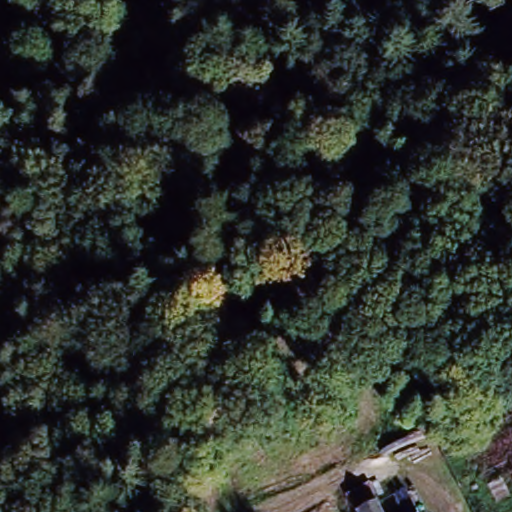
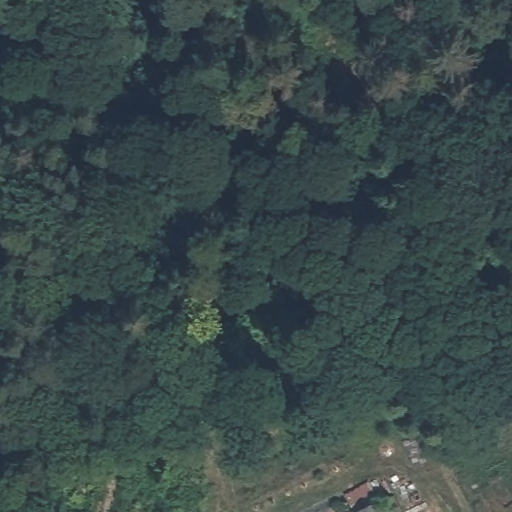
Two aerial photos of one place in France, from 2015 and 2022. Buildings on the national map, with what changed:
unchanged [(378,502),(383,512),(353,512),(353,511),(378,502)]

